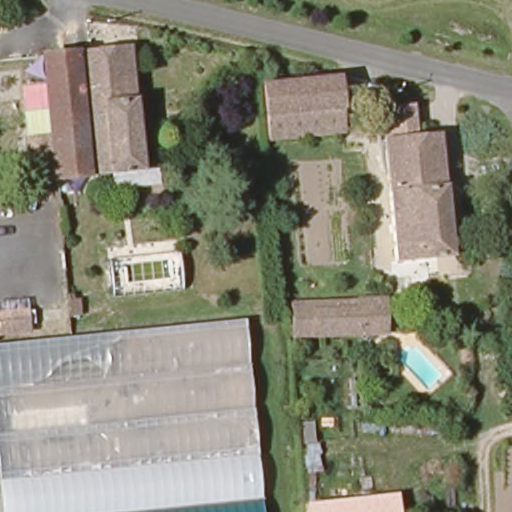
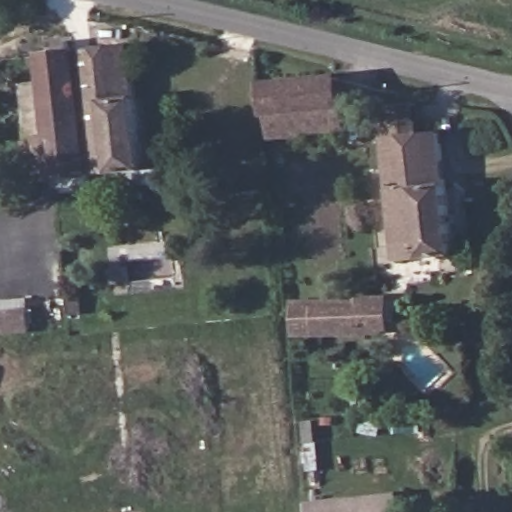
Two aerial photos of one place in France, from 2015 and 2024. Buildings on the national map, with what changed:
unchanged [(140,170),(90,175),(91,192),(75,194),(75,179),(52,181),(49,139),(41,55),(129,48),(140,170)]
unchanged [(341,74),(344,132),(267,142),(259,81),(341,74)]
unchanged [(415,133),(438,131),(454,253),(398,258),(376,105),(410,101),(415,133)]
unchanged [(52,181),(29,183),(25,140),(49,139),(52,181)]
demolished [(181,290),(105,296),(106,260),(179,254),(181,290)]
unchanged [(315,306),(381,301),(383,314),(385,332),(365,334),(295,338),(293,322),(293,308),(315,306)]
unchanged [(29,330),(4,331),(4,313),(29,311),(29,330)]
demolished [(261,512),(1,512),(0,505),(0,342),(245,322),(261,512)]
unchanged [(399,493),(401,512),(308,512),(307,504),(399,493)]

